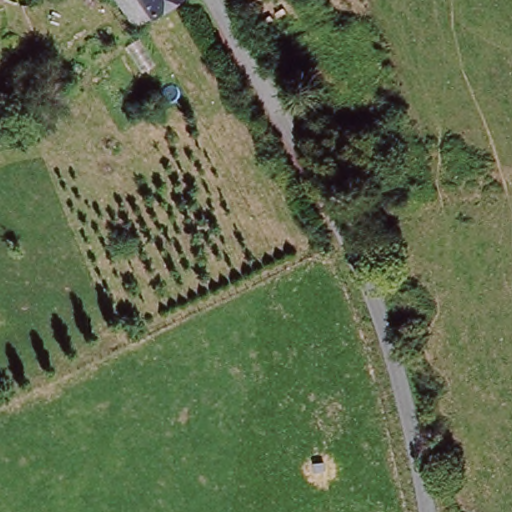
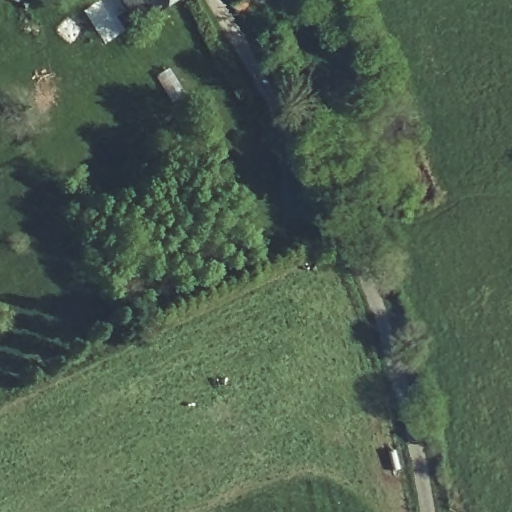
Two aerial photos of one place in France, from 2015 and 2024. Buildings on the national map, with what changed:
unchanged [(153,25),(137,0),(185,0),(186,2),(153,25)]
unchanged [(240,9),(234,0),(262,0),(240,9)]

